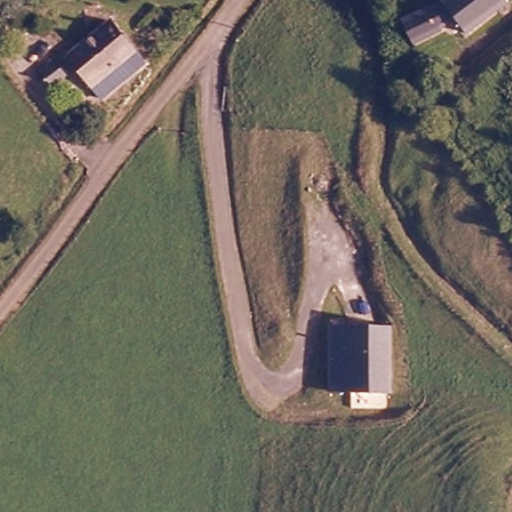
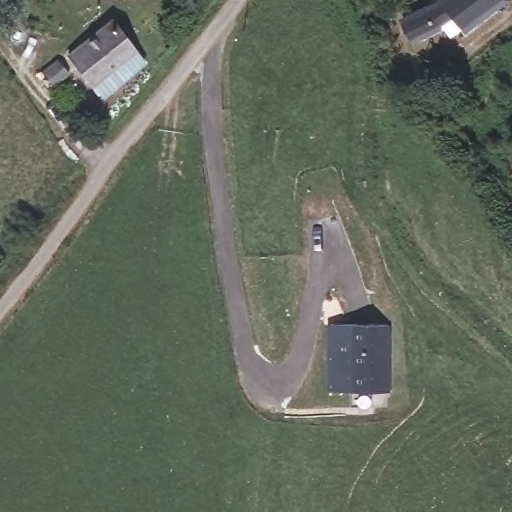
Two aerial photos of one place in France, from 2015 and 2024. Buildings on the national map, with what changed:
unchanged [(464,30),(448,12),(434,19),(439,29),(412,41),(401,18),(438,0),(502,0),(464,30)]
unchanged [(107,91),(69,47),(112,14),(150,59),(107,91)]
unchanged [(43,60),(58,48),(71,64),(56,76),(43,60)]
unchanged [(369,328),(380,329),(379,393),(321,391),(322,326),(369,328)]

